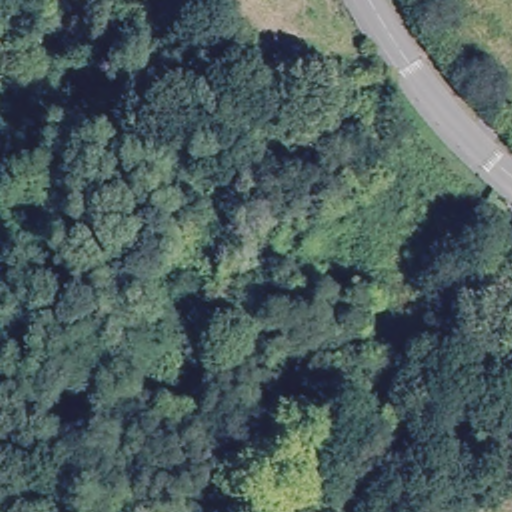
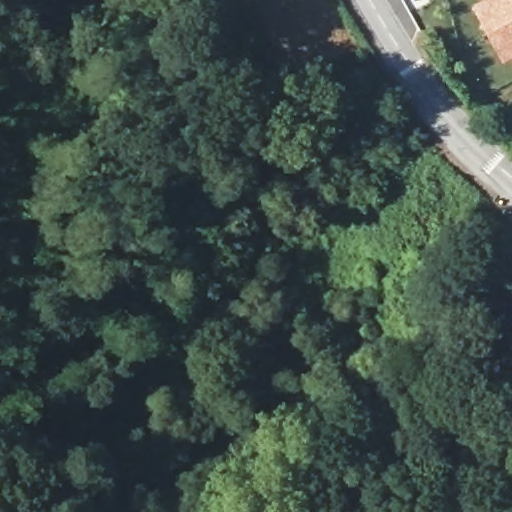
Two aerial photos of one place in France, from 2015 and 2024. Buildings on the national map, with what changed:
new [(512,0),(512,59),(503,63),(473,3),(478,0),(512,0)]

